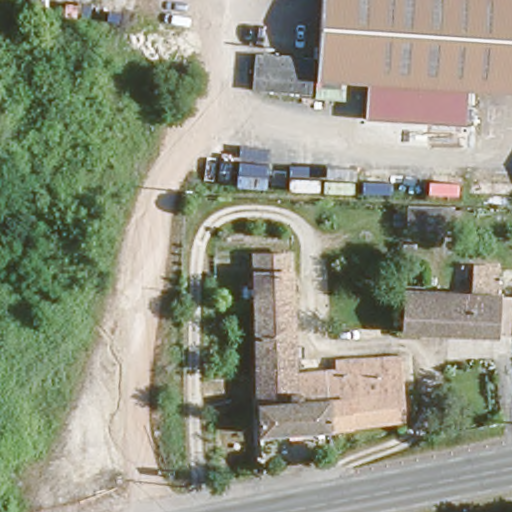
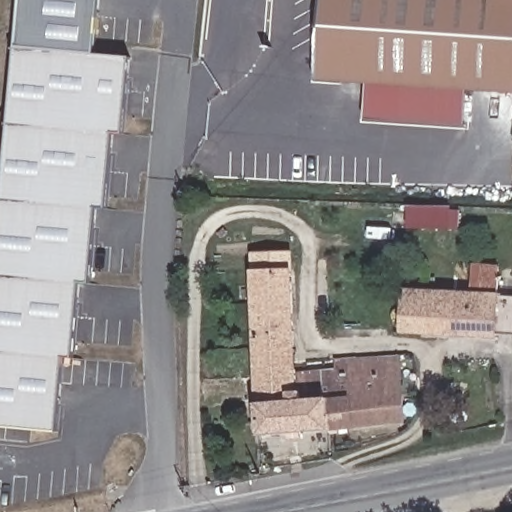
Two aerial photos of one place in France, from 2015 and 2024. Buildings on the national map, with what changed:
new [(93,55),(130,58),(124,132),(113,132),(105,206),(96,205),(90,283),(80,282),(72,358),(64,357),(58,430),(0,425),(0,222),(19,0),(97,0),(93,55)]
unchanged [(271,55),(313,58),(320,0),(512,0),(512,89),(471,85),(468,126),(363,119),(365,76),(344,75),(340,92),(327,91),(326,105),(297,100),(299,86),(267,86),(271,55)]
unchanged [(293,245),(301,370),(333,367),(332,355),(396,353),(402,418),(256,432),(247,242),(293,245)]
unchanged [(500,258),(500,262),(498,287),(490,286),(455,284),(456,260),(457,255),(500,258)]
unchanged [(483,320),(482,328),(391,320),(393,285),(504,293),(502,321),(483,320)]

